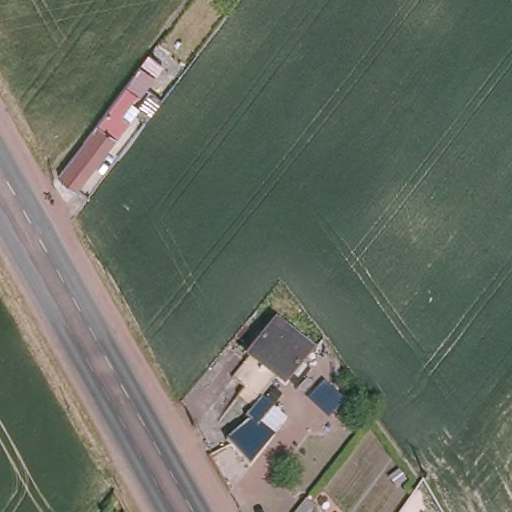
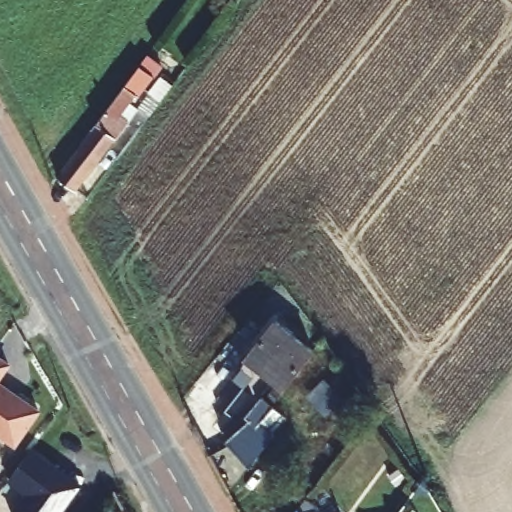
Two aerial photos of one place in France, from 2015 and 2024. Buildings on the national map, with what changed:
unchanged [(139,61),(148,70),(112,116),(122,127),(77,186),(57,168),(139,61)]
unchanged [(152,111),(142,102),(157,83),(167,91),(152,111)]
unchanged [(292,375),(282,369),(267,392),(240,371),(284,314),(318,343),(292,375)]
new [(0,371),(0,358),(6,362),(0,371)]
new [(12,443),(0,436),(0,383),(37,409),(12,443)]
unchanged [(207,455),(227,443),(225,439),(252,425),(271,440),(228,492),(207,455)]
new [(62,472),(77,483),(56,512),(8,512),(23,491),(5,478),(28,447),(54,466),(62,472)]
unchanged [(315,512),(313,512),(314,510),(315,512)]

